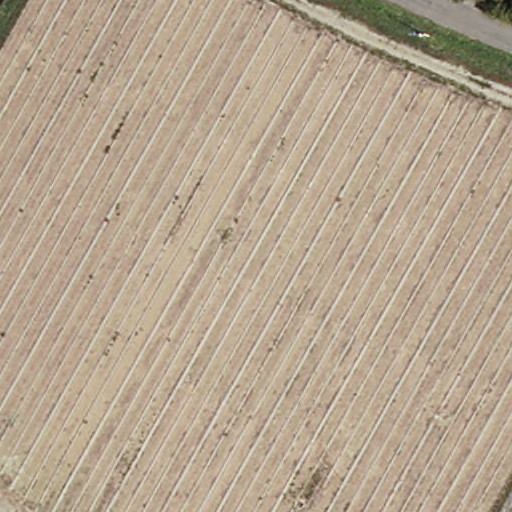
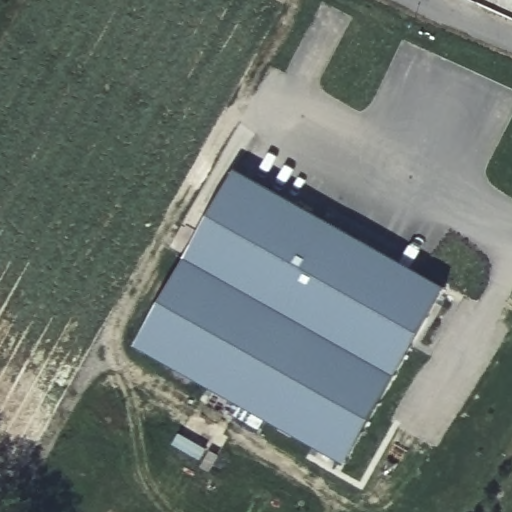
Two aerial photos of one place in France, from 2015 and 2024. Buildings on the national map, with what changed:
new [(233,177),(435,290),(343,455),(141,342),(233,177)]

